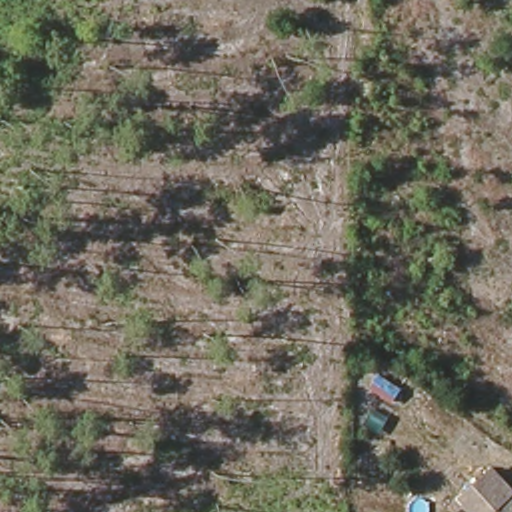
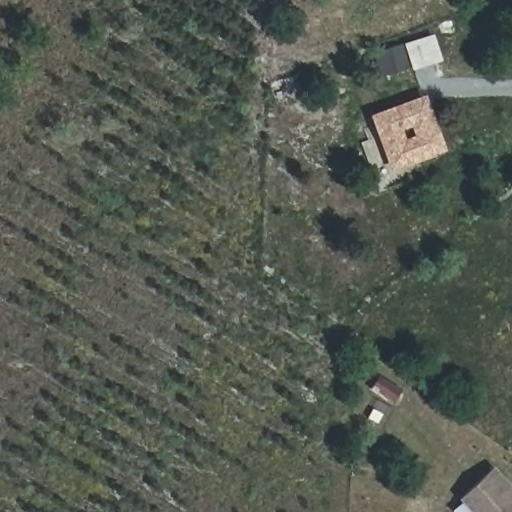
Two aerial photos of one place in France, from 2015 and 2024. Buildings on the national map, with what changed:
new [(441,60),(411,70),(402,45),(432,34),(441,60)]
new [(424,94),(444,150),(389,171),(368,115),(424,94)]
unchanged [(512,500),(512,512),(471,512),(460,500),(492,470),(512,492),(512,495),(509,497),(512,500)]

